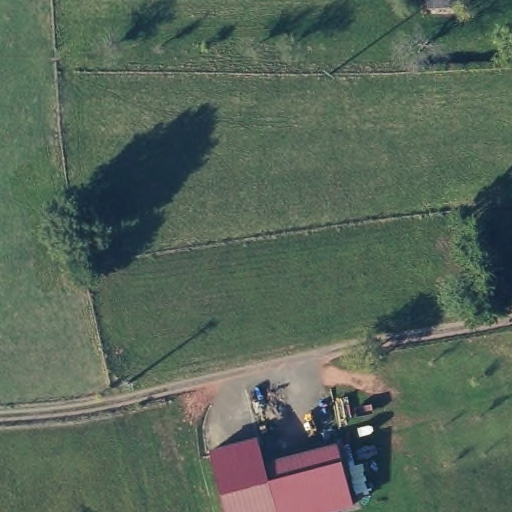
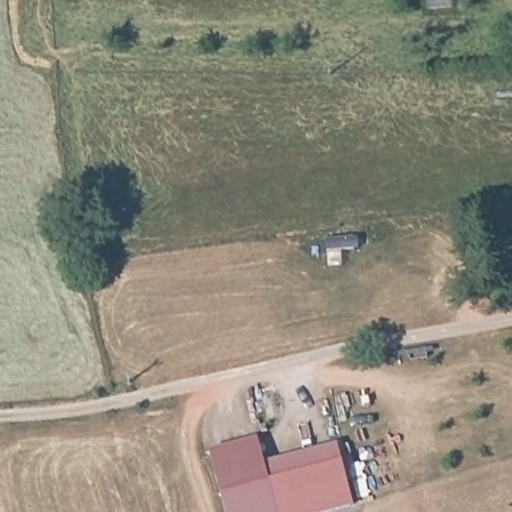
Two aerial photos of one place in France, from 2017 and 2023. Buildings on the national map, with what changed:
unchanged [(352,507),(333,512),(223,512),(207,449),(257,437),(264,462),(335,443),(352,507)]

